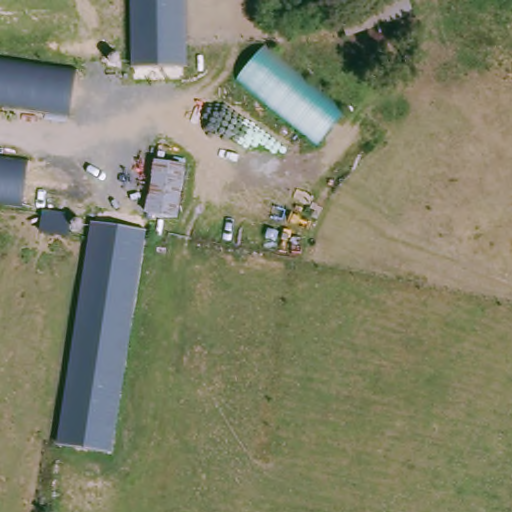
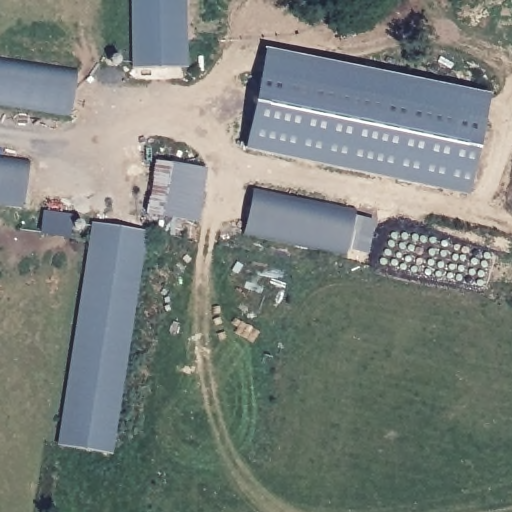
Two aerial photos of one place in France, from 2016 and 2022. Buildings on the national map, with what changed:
unchanged [(132,67),(130,0),(186,0),(187,67),(132,67)]
unchanged [(338,12),(378,0),(410,0),(415,16),(347,39),(338,12)]
demolished [(320,146),(237,81),(266,45),(346,110),(320,146)]
new [(264,55),(487,100),(465,198),(244,150),(264,55)]
unchanged [(0,102),(0,62),(75,74),(70,112),(0,102)]
unchanged [(0,202),(0,151),(30,155),(22,205),(0,202)]
new [(145,215),(154,162),(185,167),(176,219),(145,215)]
new [(355,216),(375,220),(367,255),(347,250),(245,232),(252,189),(356,210),(355,216)]
unchanged [(146,229),(110,451),(55,444),(89,219),(146,229)]

